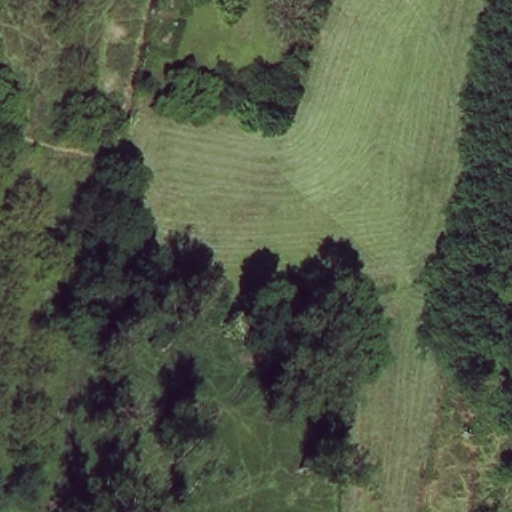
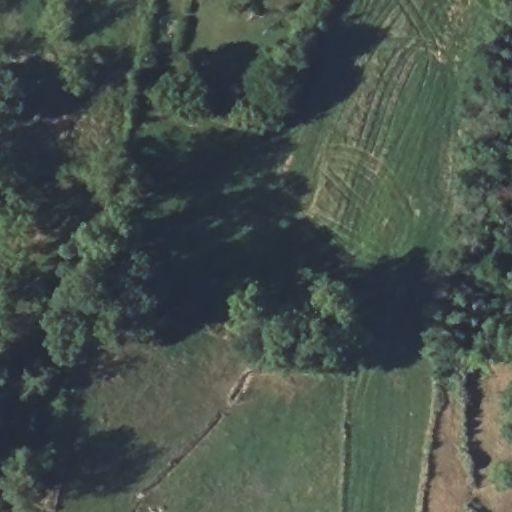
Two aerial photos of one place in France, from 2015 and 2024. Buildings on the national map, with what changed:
[]

